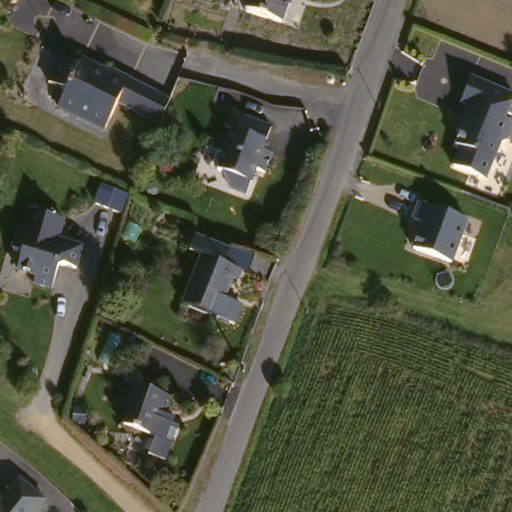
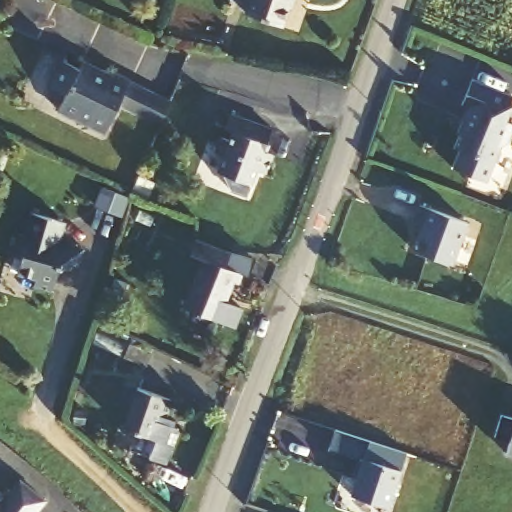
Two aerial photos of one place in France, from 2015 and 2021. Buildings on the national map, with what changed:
unchanged [(293,0),(287,21),(252,11),(255,0),(293,0)]
unchanged [(66,108),(74,91),(57,84),(69,58),(86,66),(89,59),(100,64),(118,73),(120,69),(138,78),(126,103),(114,130),(66,108)]
unchanged [(138,78),(180,97),(168,123),(126,103),(138,78)]
unchanged [(464,106),(468,85),(512,96),(512,127),(495,177),(457,166),(476,110),(464,106)]
unchanged [(238,109),(277,126),(267,149),(276,153),(268,172),(259,167),(248,192),(232,185),(226,169),(220,166),(227,150),(219,146),(226,131),(234,135),(237,127),(231,124),(238,109)]
new [(78,200),(103,208),(97,227),(72,219),(78,200)]
unchanged [(428,202),(476,220),(463,259),(415,239),(428,202)]
unchanged [(70,221),(64,241),(88,248),(81,270),(69,266),(63,269),(56,290),(38,285),(40,278),(39,275),(23,270),(28,253),(18,250),(24,231),(29,233),(36,210),(70,221)]
unchanged [(197,253),(185,248),(190,235),(223,248),(219,260),(234,267),(230,279),(226,277),(213,312),(179,298),(197,253)]
unchanged [(175,396),(169,413),(174,415),(172,421),(181,424),(169,459),(152,453),(159,435),(127,424),(140,384),(175,396)]
new [(512,418),(512,455),(504,453),(508,441),(494,437),(502,415),(512,418)]
new [(335,431),(368,441),(406,454),(389,507),(350,495),(360,460),(329,450),(335,431)]
unchanged [(5,501),(25,477),(50,498),(37,512),(0,512),(0,497),(5,501)]

